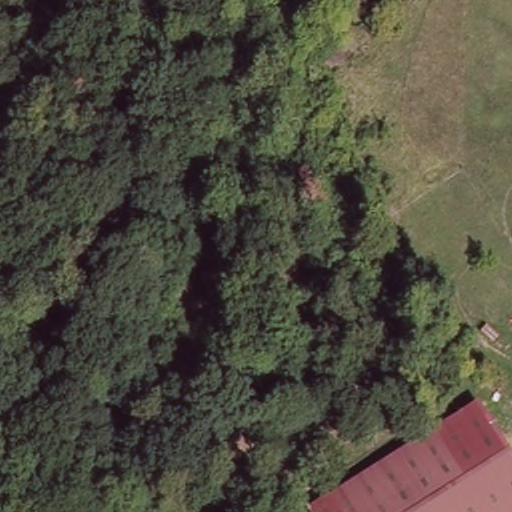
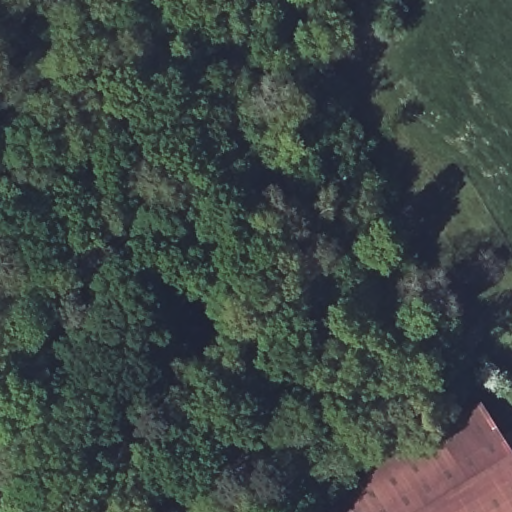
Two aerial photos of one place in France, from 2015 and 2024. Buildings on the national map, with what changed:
unchanged [(512,506),(502,512),(310,512),(305,504),(476,406),(512,467),(512,506)]
unchanged [(512,506),(512,512),(502,512),(512,506)]

